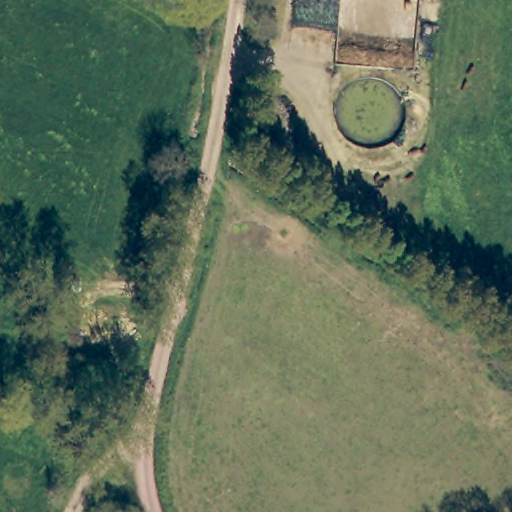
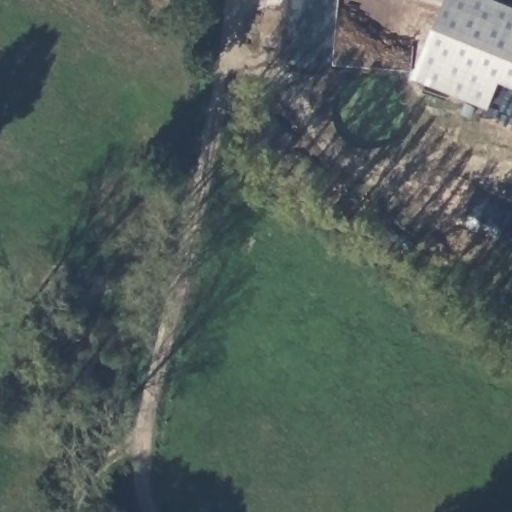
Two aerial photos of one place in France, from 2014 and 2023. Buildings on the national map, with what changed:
new [(512,7),(512,88),(500,83),(489,110),(412,77),(444,0),(495,0),(512,7)]

